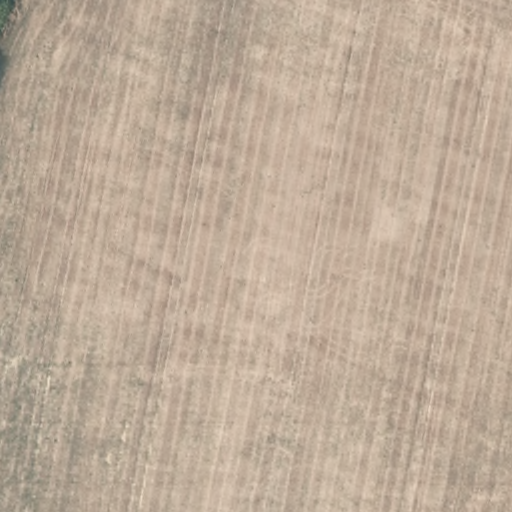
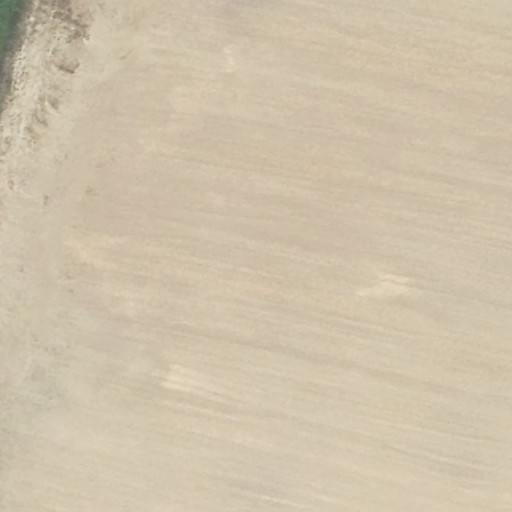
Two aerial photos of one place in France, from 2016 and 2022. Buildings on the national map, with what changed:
[]

